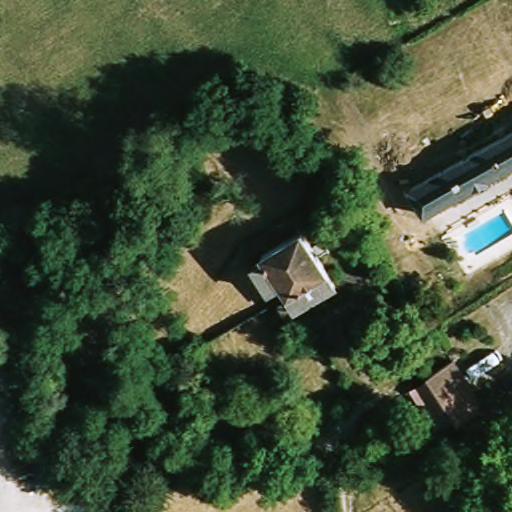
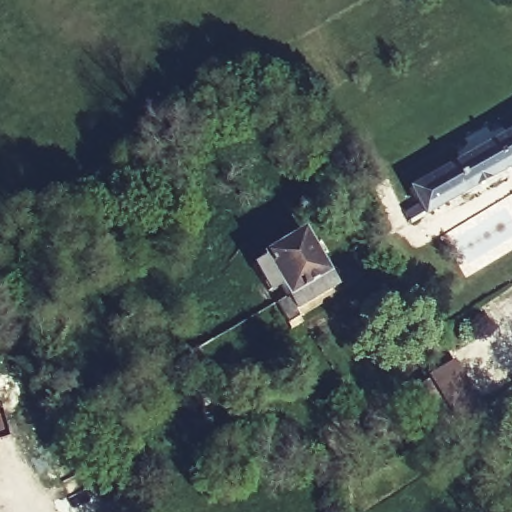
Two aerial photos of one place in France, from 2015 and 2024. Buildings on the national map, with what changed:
unchanged [(407,180),(512,121),(512,157),(422,206),(407,180)]
unchanged [(295,314),(298,319),(285,327),(269,299),(279,293),(272,281),(262,288),(246,262),(256,256),(253,251),(295,226),(329,282),(310,294),(315,300),(295,314)]
unchanged [(215,365),(205,371),(190,349),(201,342),(215,365)]
unchanged [(428,374),(427,371),(452,356),(482,405),(455,421),(428,374)]
unchanged [(437,431),(410,384),(428,374),(455,421),(437,431)]
unchanged [(214,390),(207,391),(205,382),(214,381),(214,390)]

